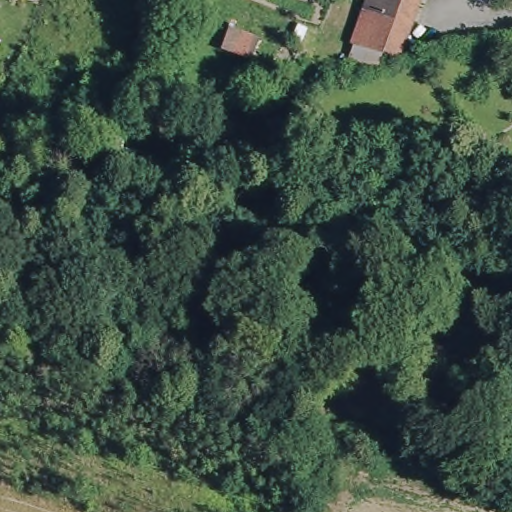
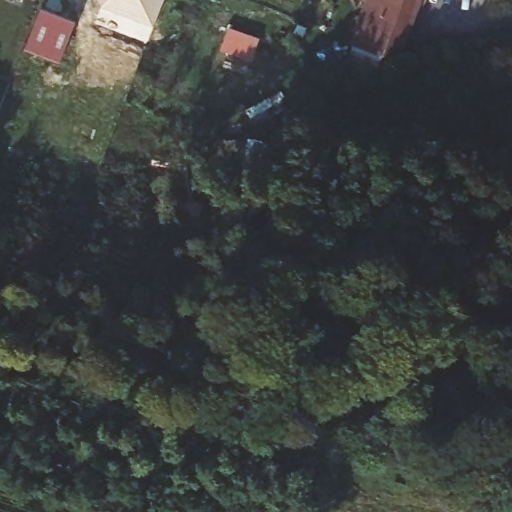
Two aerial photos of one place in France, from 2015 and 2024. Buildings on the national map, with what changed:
new [(102,7),(99,0),(164,0),(154,27),(102,7)]
unchanged [(376,64),(357,60),(362,39),(361,38),(375,0),(426,0),(407,50),(392,46),(384,61),(376,64)]
new [(26,50),(42,9),(77,22),(62,63),(26,50)]
unchanged [(245,57),(222,49),(229,30),(250,39),(245,57)]

